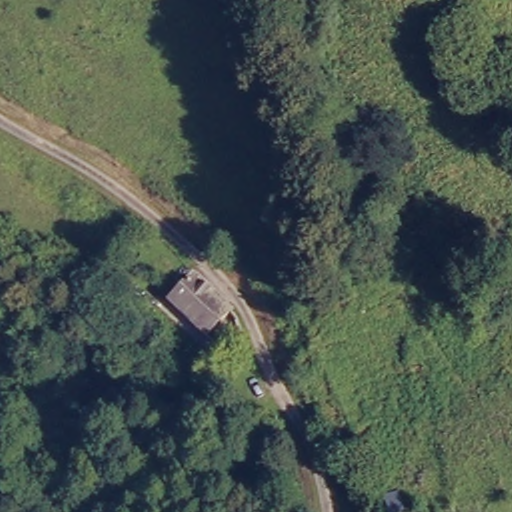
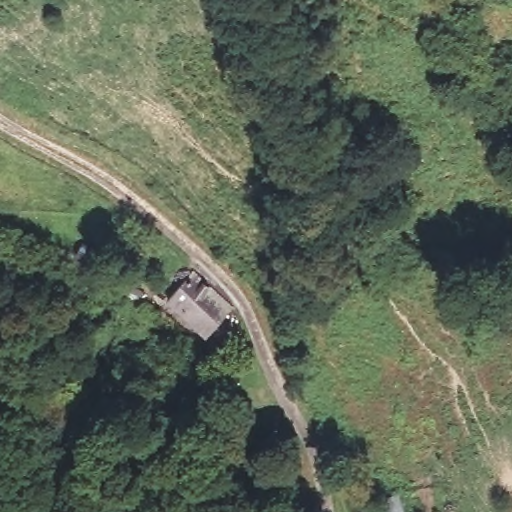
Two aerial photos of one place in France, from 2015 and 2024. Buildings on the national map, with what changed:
unchanged [(192,282),(194,282),(229,315),(200,345),(166,310),(192,282)]

